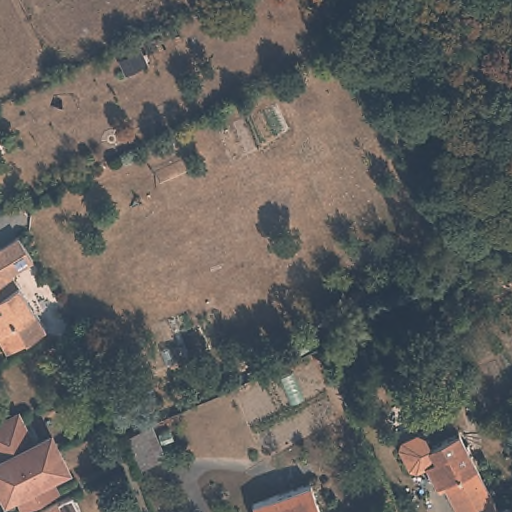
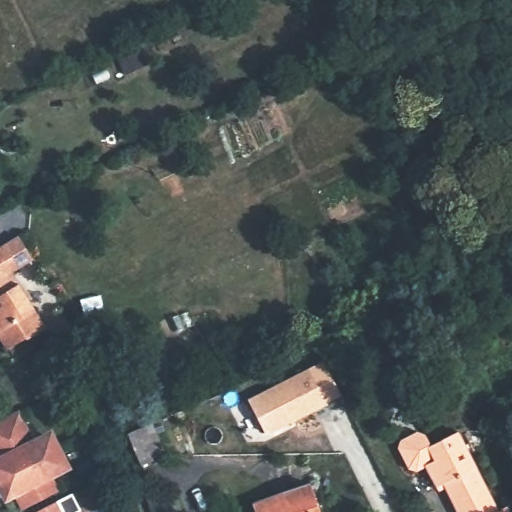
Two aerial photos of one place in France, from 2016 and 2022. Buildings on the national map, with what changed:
unchanged [(33,255),(12,269),(46,325),(28,336),(26,334),(9,345),(0,330),(0,246),(19,234),(33,255)]
new [(327,405),(265,436),(247,400),(308,368),(327,405)]
unchanged [(44,471),(53,487),(21,503),(14,486),(3,491),(0,486),(0,420),(15,412),(29,441),(45,433),(53,448),(61,462),(44,471)]
unchanged [(141,465),(128,433),(151,424),(164,455),(141,465)]
unchanged [(500,512),(458,512),(444,485),(438,489),(426,467),(418,471),(411,470),(400,450),(403,443),(418,435),(425,437),(430,446),(459,432),(500,512)]
unchanged [(311,485),(320,512),(254,512),(252,506),(311,485)]
unchanged [(65,492),(71,507),(64,511),(65,512),(27,512),(65,492)]
unchanged [(509,507),(511,512),(500,512),(509,507)]

